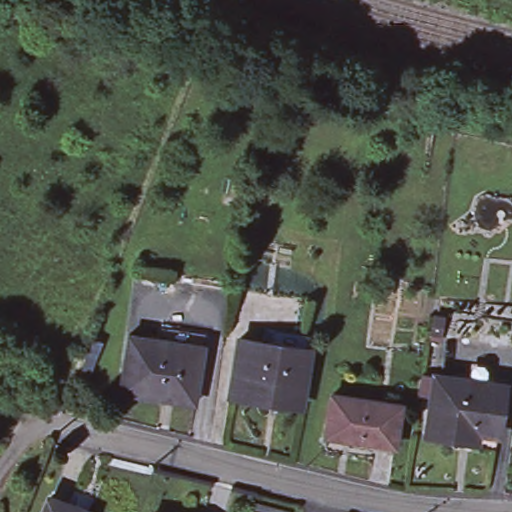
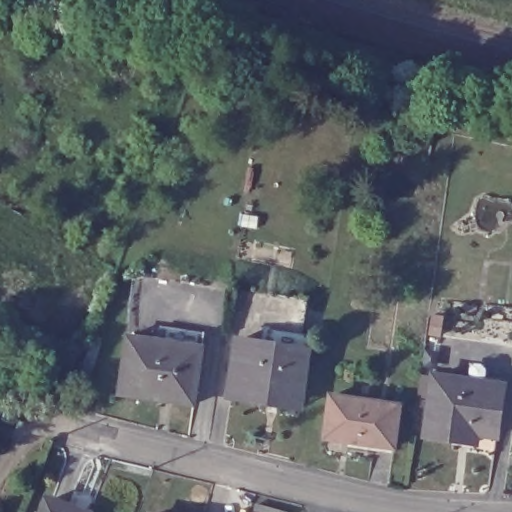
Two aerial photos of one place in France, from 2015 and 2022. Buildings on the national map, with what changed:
unchanged [(270,328),(311,334),(309,348),(300,406),(232,396),(240,338),(267,342),(270,328)]
unchanged [(155,332),(200,339),(198,351),(190,408),(115,398),(124,340),(153,344),(155,332)]
unchanged [(505,384),(498,434),(478,431),(476,441),(427,434),(435,374),(505,384)]
unchanged [(400,404),(395,446),(327,436),(332,394),(400,404)]
unchanged [(82,512),(44,512),(50,499),(82,512)]

